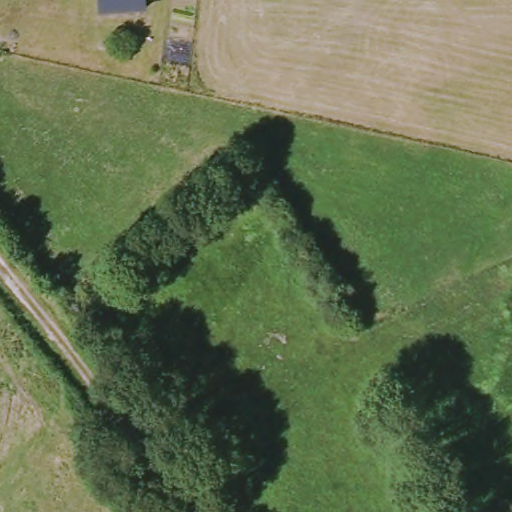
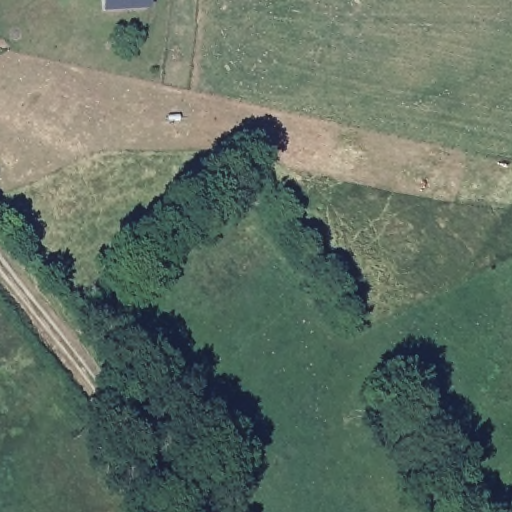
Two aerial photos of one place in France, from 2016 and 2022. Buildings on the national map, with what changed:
unchanged [(149,11),(104,14),(102,0),(148,0),(149,11)]

